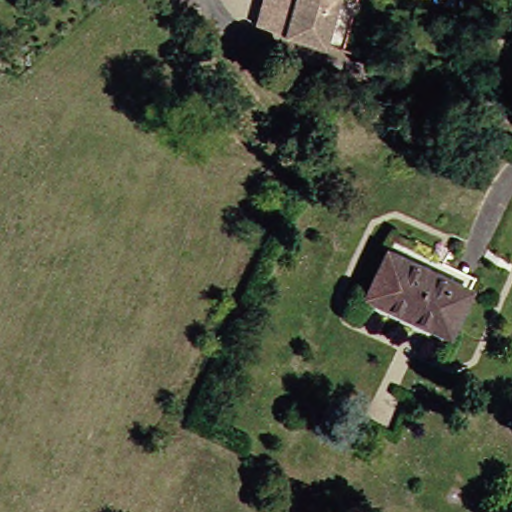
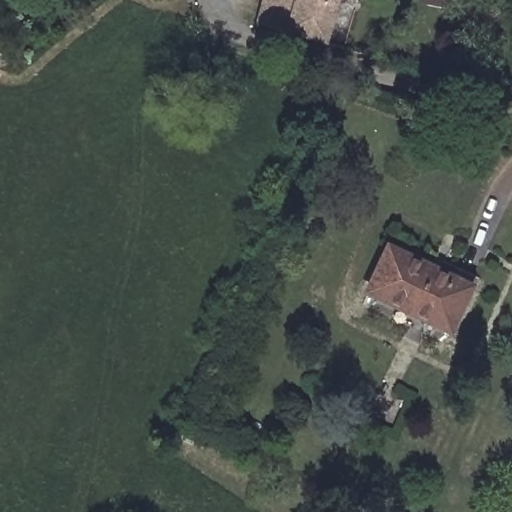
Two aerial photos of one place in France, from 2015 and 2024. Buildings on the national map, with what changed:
unchanged [(328,43),(253,21),(260,0),(342,0),(328,43)]
unchanged [(395,235),(476,273),(471,284),(389,247),(395,235)]
unchanged [(389,247),(471,284),(450,330),(368,292),(389,247)]
unchanged [(450,330),(443,344),(361,306),(368,292),(450,330)]

